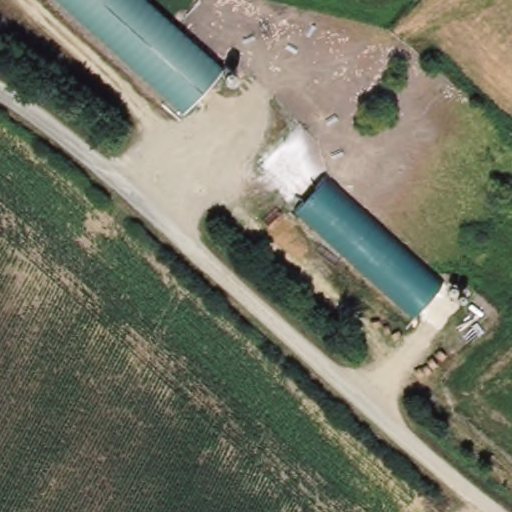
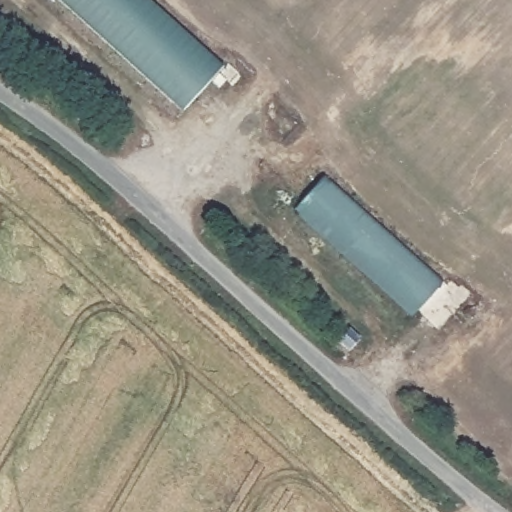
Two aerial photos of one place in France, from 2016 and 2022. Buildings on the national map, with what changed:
unchanged [(182,111),(57,0),(143,0),(220,69),(182,111)]
unchanged [(298,212),(329,180),(443,286),(415,316),(298,212)]

